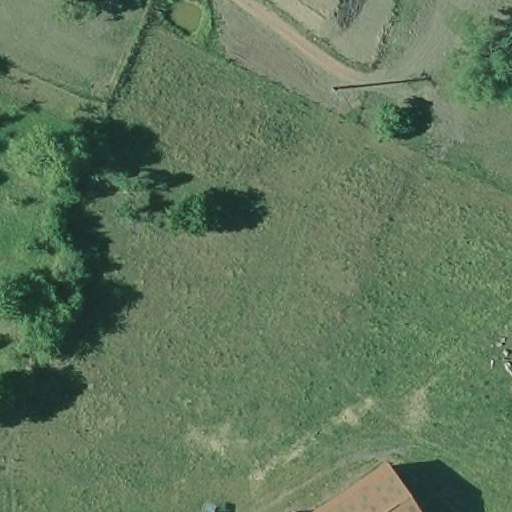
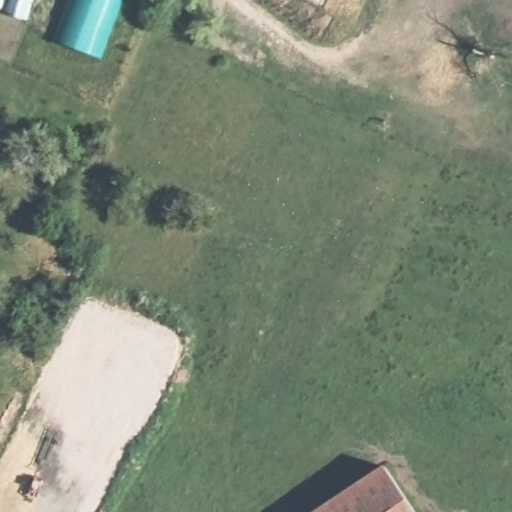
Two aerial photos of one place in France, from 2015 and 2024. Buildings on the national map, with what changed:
new [(54,44),(70,0),(123,0),(102,60),(54,44)]
unchanged [(411,512),(316,512),(383,468),(411,512)]

